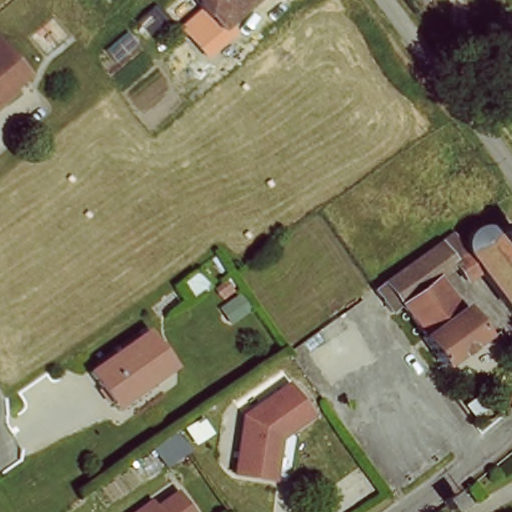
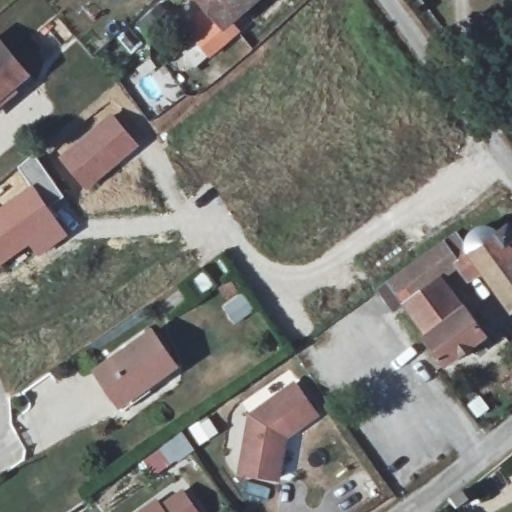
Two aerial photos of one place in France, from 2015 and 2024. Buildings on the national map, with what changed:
unchanged [(273,0),(274,3),(261,15),(253,6),(226,29),(199,0),(273,0)]
unchanged [(31,77),(0,103),(0,41),(31,77)]
new [(110,111),(140,145),(87,191),(57,154),(110,111)]
new [(36,153),(65,196),(50,207),(29,185),(16,166),(36,153)]
new [(29,185),(50,207),(69,235),(38,257),(30,246),(0,266),(0,205),(29,185)]
unchanged [(471,304),(491,332),(451,361),(429,333),(433,330),(403,288),(390,296),(381,283),(442,241),(451,235),(471,260),(471,251),(472,243),(475,238),(481,234),(486,232),(493,231),(498,233),(504,237),(512,231),(512,313),(507,307),(485,277),(484,276),(482,273),(469,281),(459,268),(446,277),(466,307),(471,304)]
demolished [(363,328),(383,357),(342,385),(321,357),(363,328)]
unchanged [(184,372),(156,392),(153,386),(119,408),(98,378),(160,336),(184,372)]
unchanged [(286,420),(311,455),(257,492),(233,457),(286,420)]
unchanged [(457,494),(463,503),(452,512),(448,506),(446,503),(457,494)]
unchanged [(184,503),(190,512),(170,512),(184,503)]
unchanged [(157,506),(162,512),(148,512),(157,506)]

